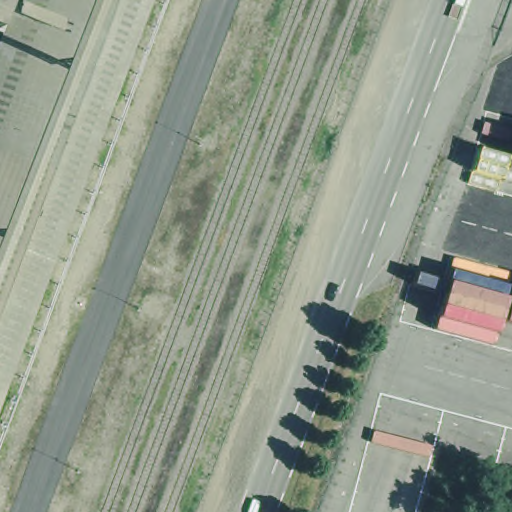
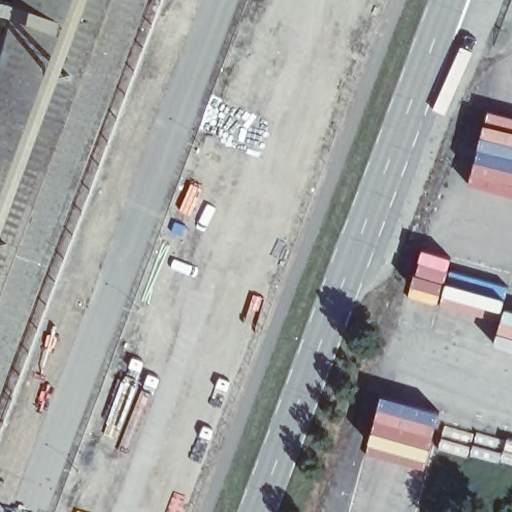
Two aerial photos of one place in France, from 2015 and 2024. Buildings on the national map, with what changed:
unchanged [(21,10),(25,0),(154,0),(160,2),(0,417),(0,68),(8,45),(0,42),(0,2),(21,10)]
new [(382,395),(437,410),(423,469),(365,454),(382,395)]

